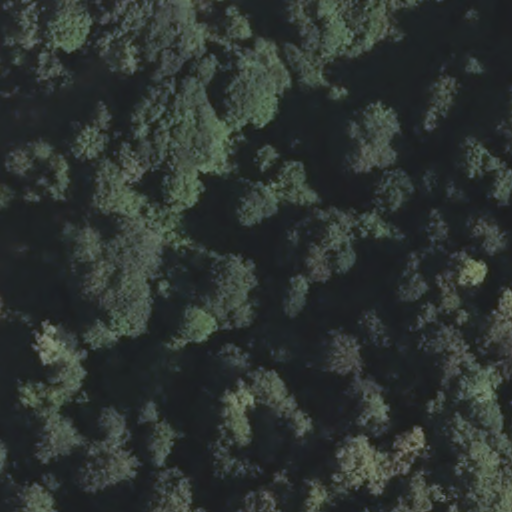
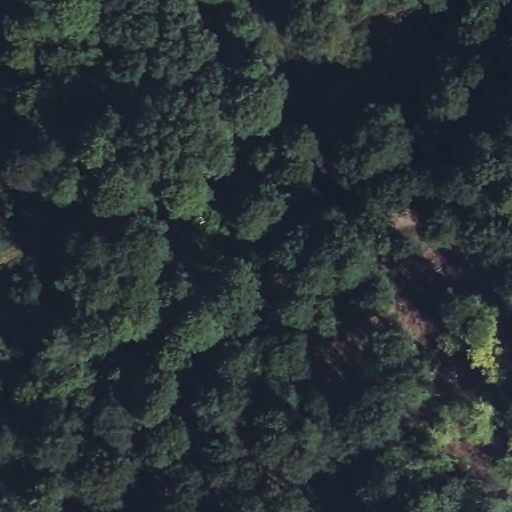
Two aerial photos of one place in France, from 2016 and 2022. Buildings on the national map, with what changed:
unchanged [(270,279),(293,270),(307,306),(260,324),(246,289),(270,279)]

